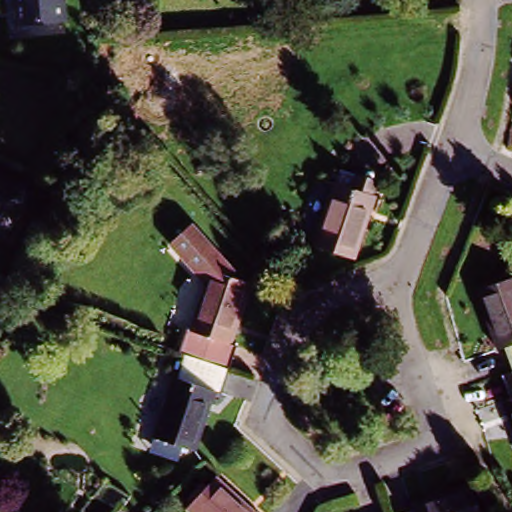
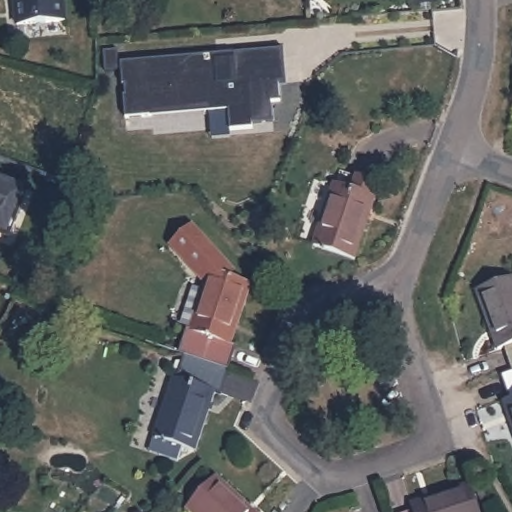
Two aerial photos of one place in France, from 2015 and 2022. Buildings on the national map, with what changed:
unchanged [(22,22),(20,1),(22,1),(22,0),(68,0),(70,18),(22,22)]
new [(222,50),(222,57),(239,56),(238,49),(292,45),(294,78),(285,79),(287,97),(277,97),(279,117),(257,119),(258,125),(235,126),(234,101),(212,102),(211,97),(152,103),(152,107),(125,109),(124,91),(126,91),(125,81),(122,81),(121,58),(222,50)]
unchanged [(27,186),(10,231),(0,227),(0,175),(27,186)]
unchanged [(331,190),(335,176),(352,182),(371,187),(367,202),(370,202),(352,261),(312,248),(330,190),(331,190)]
unchanged [(157,442),(177,382),(179,382),(187,360),(195,336),(192,334),(209,285),(202,277),(178,245),(199,228),(200,230),(237,275),(234,282),(255,289),(235,348),(242,352),(234,375),(226,398),(219,396),(197,455),(185,451),(180,466),(152,456),(157,442)]
unchanged [(499,352),(494,353),(474,296),(512,283),(512,376),(508,377),(499,352)]
unchanged [(512,376),(512,441),(500,407),(508,405),(500,380),(508,377),(512,376)]
unchanged [(385,507),(407,498),(405,492),(466,471),(479,512),(370,512),(385,507)]
unchanged [(247,512),(186,512),(184,509),(214,478),(247,512)]

